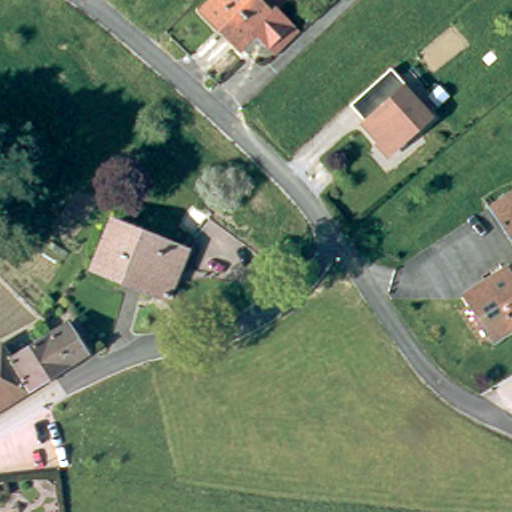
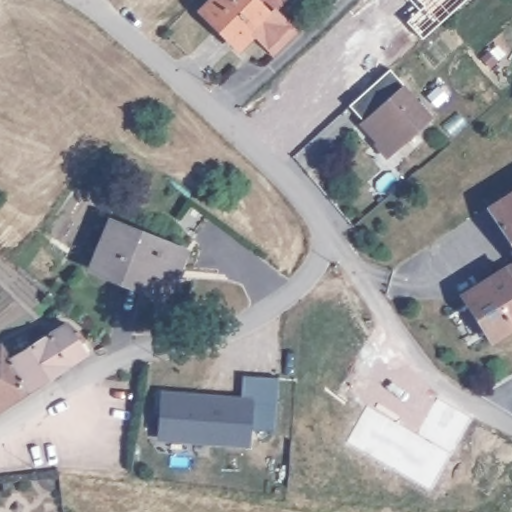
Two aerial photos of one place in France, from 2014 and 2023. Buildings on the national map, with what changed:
unchanged [(229,56),(193,23),(212,0),(274,0),(275,1),(229,56)]
unchanged [(367,88),(388,69),(402,86),(400,88),(411,101),(377,131),(370,139),(357,125),(360,124),(345,108),(367,88)]
unchanged [(387,158),(386,157),(375,144),(370,139),(377,131),(411,101),(429,120),(393,151),(394,151),(387,158)]
unchanged [(512,189),(512,240),(487,204),(512,189)]
unchanged [(152,284),(98,260),(113,220),(170,244),(181,249),(180,252),(173,270),(165,290),(152,284)]
unchanged [(512,259),(512,322),(488,337),(457,292),(512,259)]
unchanged [(20,357),(24,355),(22,353),(57,331),(62,328),(75,320),(82,331),(86,328),(92,336),(88,339),(97,351),(82,358),(38,385),(20,357)]
unchanged [(11,362),(8,358),(17,353),(20,357),(38,385),(0,407),(0,369),(11,362)]
new [(278,378),(273,431),(252,429),(251,449),(157,442),(161,390),(241,397),(242,375),(278,378)]

